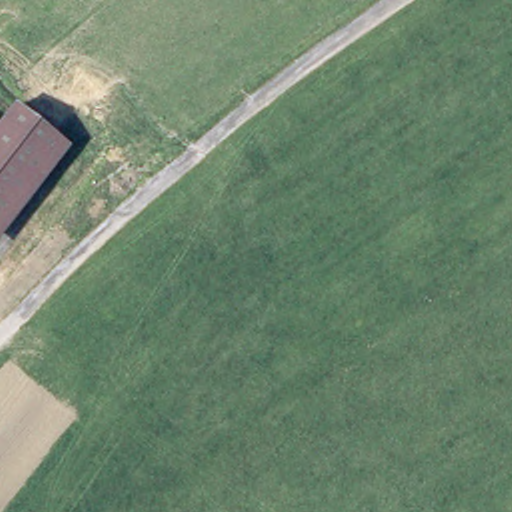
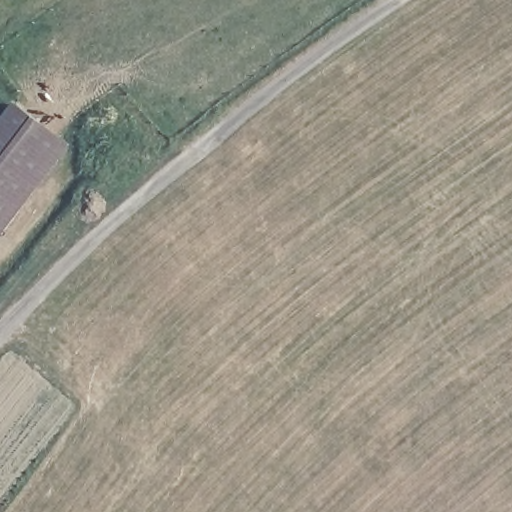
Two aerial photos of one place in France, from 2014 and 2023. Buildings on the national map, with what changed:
unchanged [(22,99),(65,132),(77,141),(0,240),(0,128),(22,99)]

